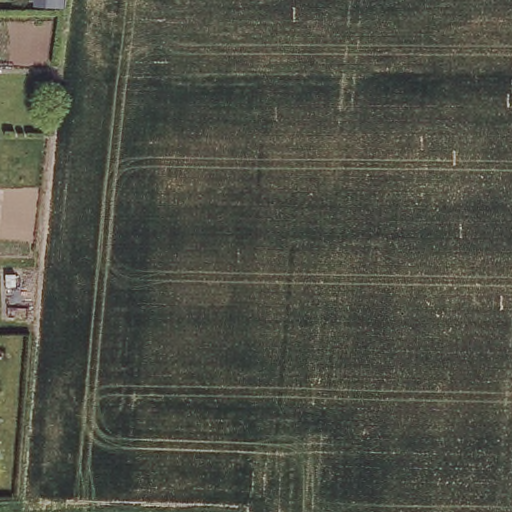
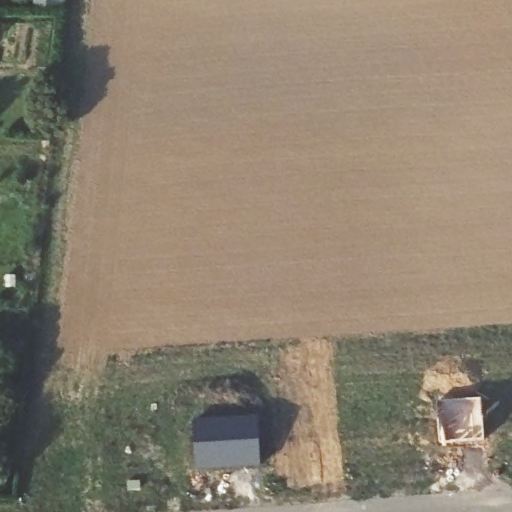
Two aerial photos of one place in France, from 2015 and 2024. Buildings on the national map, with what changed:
new [(29,7),(30,0),(64,0),(63,10),(29,7)]
new [(482,441),(440,444),(436,401),(480,400),(482,441)]
new [(260,466),(197,470),(193,420),(257,416),(260,466)]

